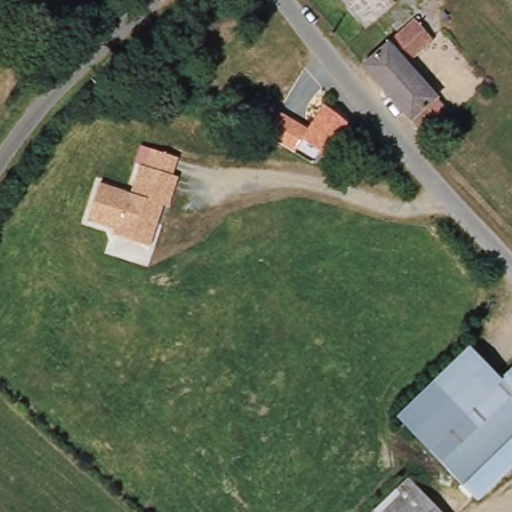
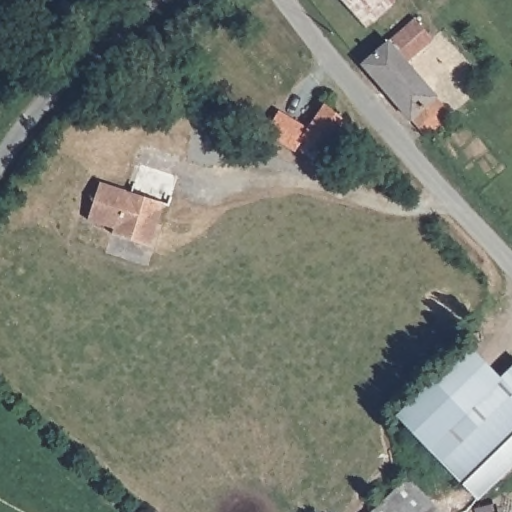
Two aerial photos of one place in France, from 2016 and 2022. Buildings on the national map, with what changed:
unchanged [(396,0),(398,3),(366,29),(344,0),(396,0)]
unchanged [(415,21),(426,35),(413,47),(420,56),(408,66),(437,102),(413,122),(364,65),(415,21)]
unchanged [(325,111),(342,126),(312,163),(297,154),(309,140),(303,135),(325,111)]
unchanged [(109,234),(113,225),(87,218),(97,181),(130,193),(138,165),(145,168),(150,149),(177,157),(173,173),(177,174),(168,206),(161,204),(148,247),(109,234)]
unchanged [(396,416),(467,346),(500,379),(428,448),(396,416)]
unchanged [(512,433),(462,481),(428,448),(500,379),(512,367),(512,433)]
unchanged [(445,512),(373,512),(409,476),(445,512)]

